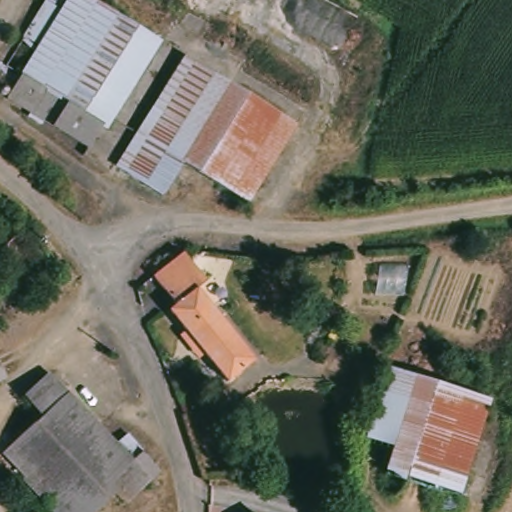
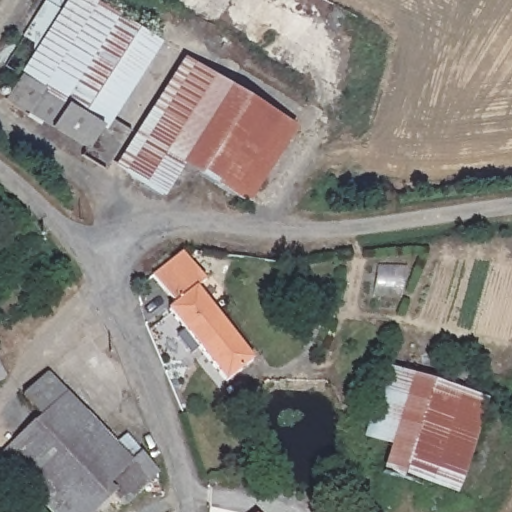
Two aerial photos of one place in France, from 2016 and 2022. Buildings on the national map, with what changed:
unchanged [(20,80),(69,0),(81,0),(155,46),(103,131),(20,80)]
unchanged [(247,208),(180,167),(161,200),(124,177),(193,69),(295,132),(247,208)]
unchanged [(103,131),(88,155),(5,103),(20,80),(103,131)]
unchanged [(173,315),(177,311),(154,281),(169,268),(183,257),(205,287),(197,294),(254,367),(228,387),(173,315)]
unchanged [(7,384),(0,387),(0,371),(7,384)]
unchanged [(389,375),(489,408),(454,502),(354,471),(389,375)]
unchanged [(2,462),(42,427),(24,405),(49,382),(118,452),(119,453),(133,470),(121,481),(114,487),(95,467),(90,462),(82,466),(56,479),(45,467),(39,473),(35,476),(24,487),(2,462)]
unchanged [(162,479),(127,512),(123,512),(115,504),(106,512),(47,512),(46,511),(24,487),(35,476),(39,473),(45,467),(56,479),(82,466),(90,462),(95,467),(114,487),(121,481),(133,470),(119,453),(118,452),(128,443),(162,479)]

